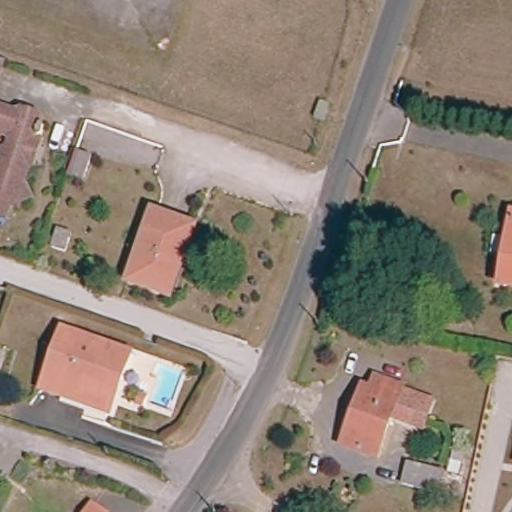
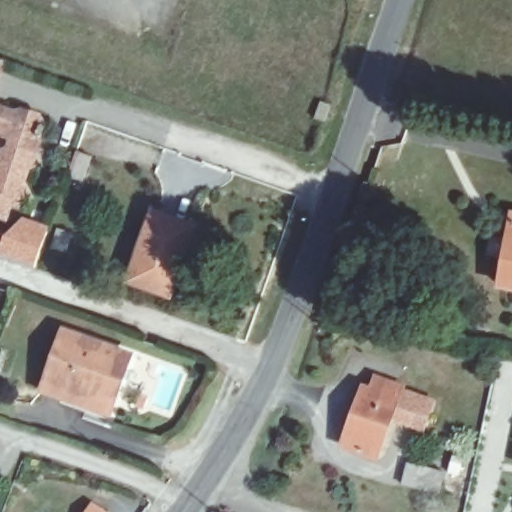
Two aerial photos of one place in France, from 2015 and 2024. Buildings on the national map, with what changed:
unchanged [(26,165),(20,181),(29,199),(18,203),(15,210),(6,207),(0,224),(0,154),(6,152),(8,146),(2,137),(0,136),(0,111),(10,115),(15,112),(31,117),(38,130),(34,141),(39,149),(35,161),(26,165)]
unchanged [(78,150),(92,155),(83,179),(69,174),(78,150)]
unchanged [(166,293),(128,281),(153,212),(194,227),(185,257),(172,296),(166,293)]
new [(0,256),(0,231),(5,233),(11,216),(49,229),(41,250),(35,267),(0,256)]
unchanged [(498,287),(512,221),(512,290),(498,287)]
unchanged [(73,235),(67,252),(53,248),(59,230),(73,235)]
unchanged [(64,406),(69,393),(45,386),(64,331),(125,352),(114,387),(111,396),(103,419),(64,406)]
unchanged [(342,446),(364,386),(374,390),(380,376),(404,384),(401,393),(433,405),(424,430),(392,418),(376,458),(342,446)]
unchanged [(442,470),(437,490),(401,481),(404,462),(442,470)]
unchanged [(84,500),(104,512),(76,512),(84,500)]

